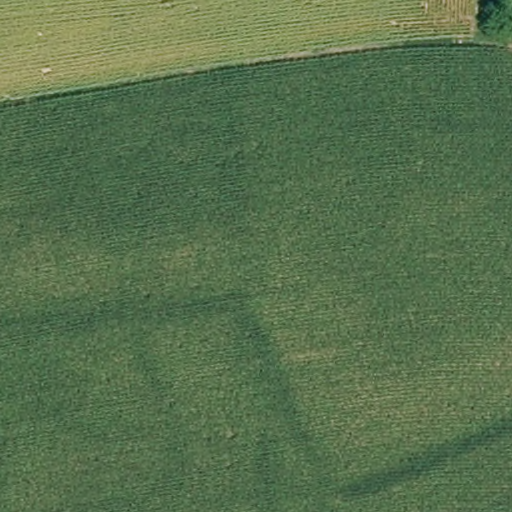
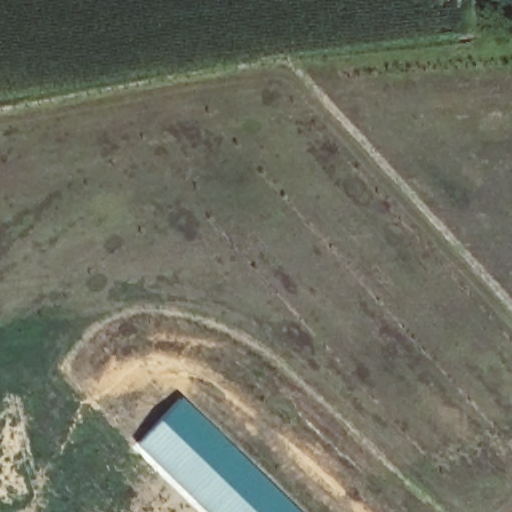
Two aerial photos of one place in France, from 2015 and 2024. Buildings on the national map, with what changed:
new [(201,512),(133,445),(180,397),(297,512),(201,512)]

